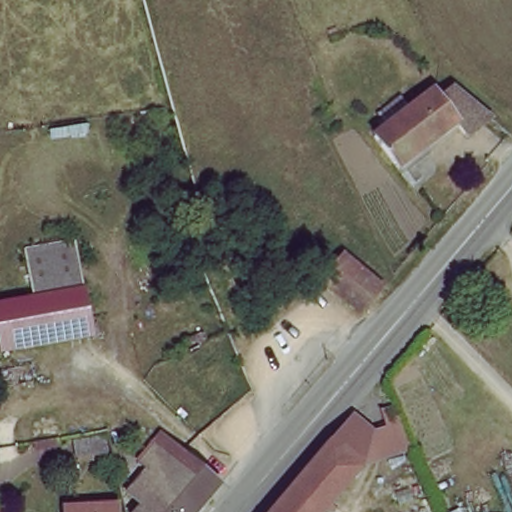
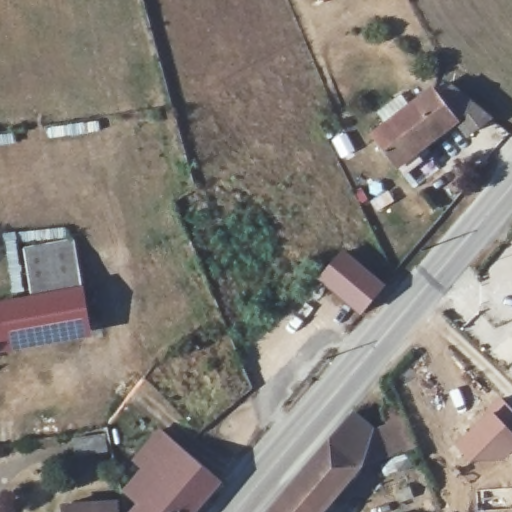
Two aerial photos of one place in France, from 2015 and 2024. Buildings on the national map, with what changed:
unchanged [(456,90),(490,115),(490,116),(475,135),(460,124),(417,176),(374,140),(385,129),(371,117),(392,95),(405,106),(420,90),(437,104),(451,86),(456,90)]
unchanged [(35,273),(33,259),(31,251),(83,244),(83,250),(89,293),(38,301),(35,273)]
unchanged [(364,309),(334,282),(325,274),(346,251),(355,259),(385,285),(364,309)]
unchanged [(95,332),(5,346),(0,318),(0,308),(38,301),(89,293),(95,332)]
new [(501,396),(512,409),(512,451),(510,453),(501,461),(479,462),(477,462),(474,459),(456,442),(501,396)]
unchanged [(390,420),(386,409),(397,405),(399,407),(404,418),(414,439),(424,463),(397,462),(365,460),(371,423),(390,420)]
unchanged [(326,507),(323,512),(268,512),(288,490),(336,434),(352,416),(358,410),(371,423),(365,460),(326,507)]
unchanged [(146,456),(168,430),(176,436),(176,437),(227,479),(216,491),(203,507),(199,512),(146,512),(152,503),(136,490),(156,464),(146,456)]
unchanged [(82,435),(100,432),(103,449),(73,453),(70,437),(75,436),(82,435)]
unchanged [(55,433),(55,441),(45,443),(34,445),(33,437),(45,435),(55,433)]
unchanged [(68,506),(120,502),(121,512),(68,512),(68,506)]

